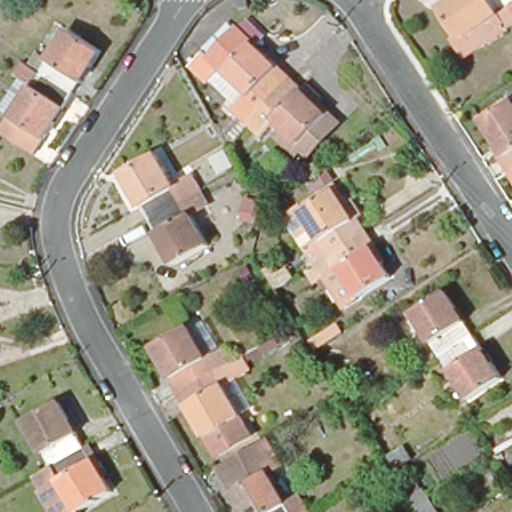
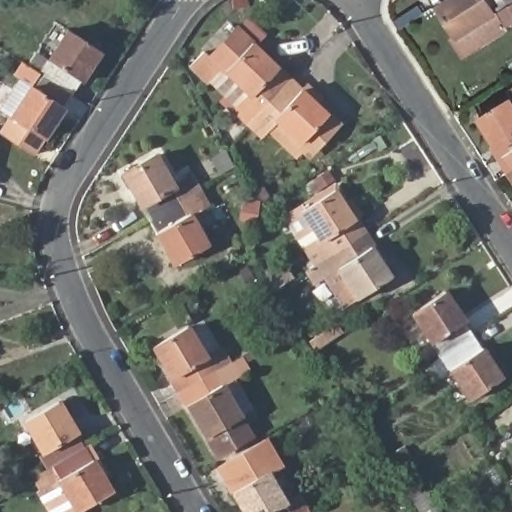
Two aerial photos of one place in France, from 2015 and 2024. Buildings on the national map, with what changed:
unchanged [(512,0),(512,27),(463,60),(448,40),(457,34),(438,5),(447,0),(512,0)]
unchanged [(237,24),(251,40),(279,65),(290,77),(302,85),(326,110),(340,123),(308,157),(301,151),(295,156),(267,130),(260,137),(229,108),(245,92),(225,72),(205,56),(237,24)]
unchanged [(74,89),(60,80),(46,71),(35,65),(30,61),(29,60),(36,50),(49,57),(70,26),(100,46),(90,63),(82,75),(74,89)]
unchanged [(30,149),(27,147),(14,139),(1,131),(12,112),(0,105),(0,102),(19,73),(14,70),(22,56),(29,60),(30,61),(35,65),(46,71),(60,80),(74,89),(65,102),(55,119),(45,135),(34,151),(30,149)]
unchanged [(508,106),(506,102),(512,98),(512,175),(511,176),(502,162),(495,150),(479,125),(508,106)]
unchanged [(215,182),(207,169),(224,160),(231,172),(215,182)]
unchanged [(119,180),(152,161),(173,197),(190,187),(195,196),(145,226),(136,211),(129,197),(119,180)]
unchanged [(512,175),(512,178),(511,176),(512,175)]
unchanged [(306,250),(322,240),(302,210),(335,190),(345,206),(353,219),(363,233),(315,263),(306,250)]
unchanged [(145,226),(195,196),(204,212),(187,222),(204,251),(170,271),(160,254),(152,240),(145,226)]
unchanged [(381,260),(391,276),(359,297),(339,267),(323,277),(315,263),(363,233),(372,247),(381,260)]
unchanged [(272,296),(258,272),(271,265),(280,278),(288,273),(295,283),(272,296)]
unchanged [(412,311),(444,290),(454,305),(463,320),(472,333),(440,354),(412,311)]
unchanged [(187,329),(214,373),(180,393),(154,348),(187,329)]
unchanged [(490,362),(499,375),(467,396),(440,354),(472,333),(480,346),(490,362)]
unchanged [(241,420),(252,438),(219,457),(180,393),(214,373),(241,420)]
unchanged [(21,421),(60,401),(77,433),(92,460),(110,491),(75,510),(76,512),(48,512),(34,490),(37,487),(32,477),(49,467),(39,453),(21,421)]
unchanged [(278,465),(265,473),(285,504),(297,496),(305,510),(304,510),(301,512),(244,512),(216,467),(263,439),(278,465)]
unchanged [(427,487),(442,512),(419,512),(409,498),(427,487)]
unchanged [(304,510),(305,512),(301,512),(304,510)]

